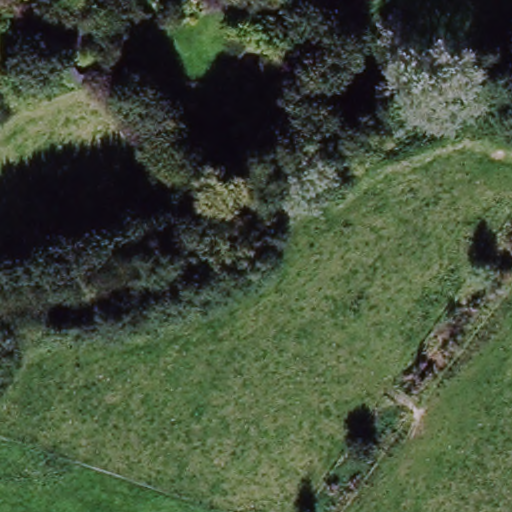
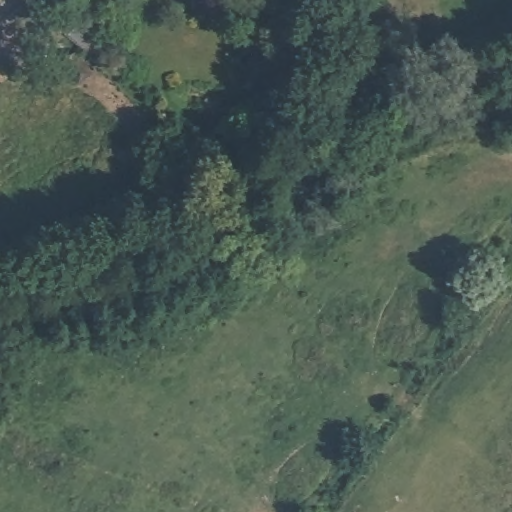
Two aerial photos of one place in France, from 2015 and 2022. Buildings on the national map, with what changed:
unchanged [(79,82),(65,64),(68,61),(58,48),(69,37),(81,49),(98,67),(79,82)]

